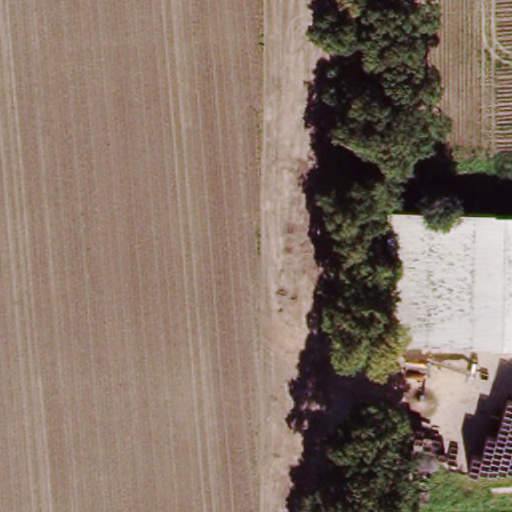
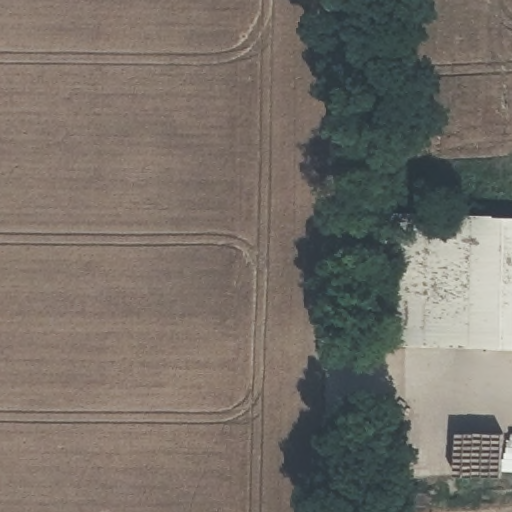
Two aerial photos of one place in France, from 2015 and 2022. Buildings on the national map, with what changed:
unchanged [(512,344),(387,339),(391,210),(432,211),(512,215),(512,344)]

